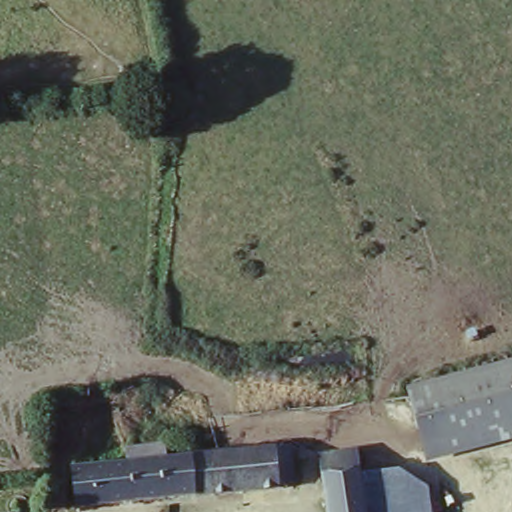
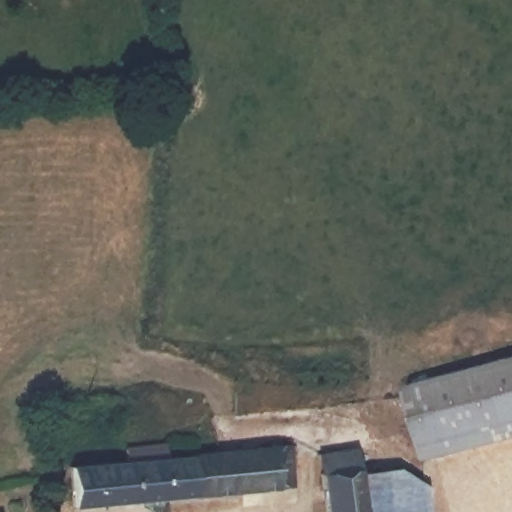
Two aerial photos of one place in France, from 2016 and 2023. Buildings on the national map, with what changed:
unchanged [(512,372),(512,437),(422,460),(419,448),(406,400),(512,372)]
unchanged [(156,444),(157,456),(282,444),(283,459),(283,484),(75,508),(70,470),(117,464),(117,448),(156,444)]
unchanged [(355,473),(360,512),(322,512),(312,454),(352,447),(355,473)]
unchanged [(418,487),(422,512),(360,512),(355,473),(392,467),(418,487)]

